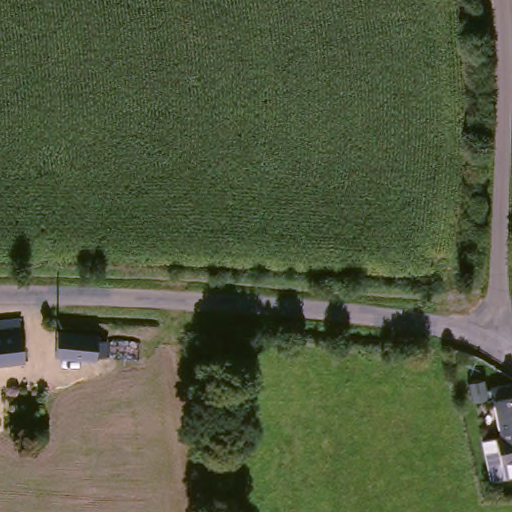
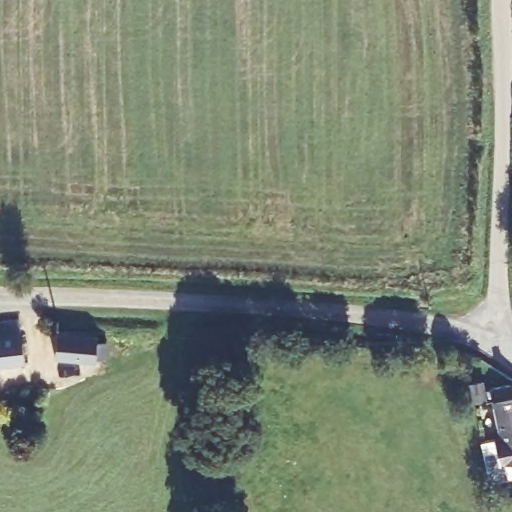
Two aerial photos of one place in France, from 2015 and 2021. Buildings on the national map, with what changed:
unchanged [(26,369),(0,369),(0,321),(26,321),(26,369)]
unchanged [(57,330),(97,332),(97,340),(107,340),(106,356),(95,356),(94,360),(55,356),(57,330)]
unchanged [(493,380),(491,368),(504,366),(507,379),(512,378),(512,464),(485,465),(478,425),(488,423),(496,421),(488,381),(493,380)]

